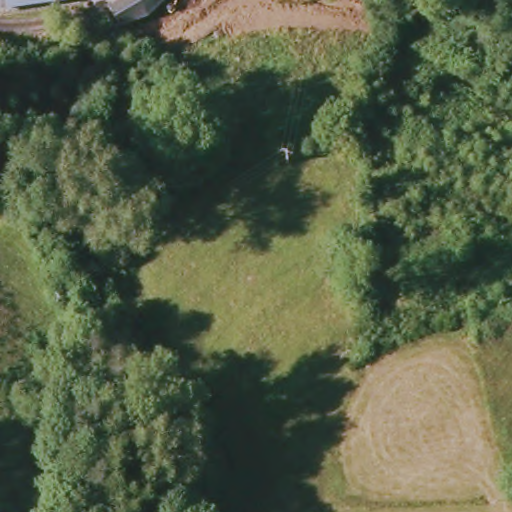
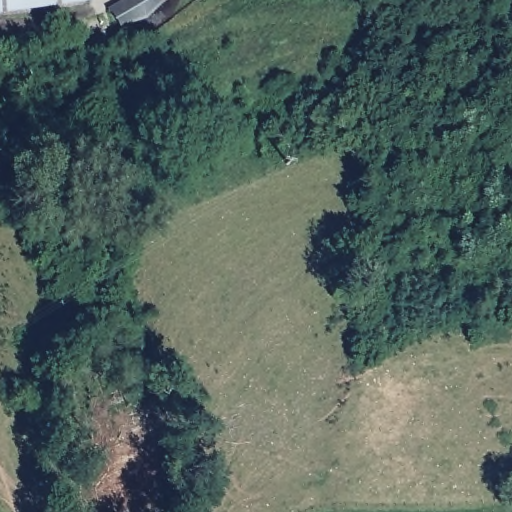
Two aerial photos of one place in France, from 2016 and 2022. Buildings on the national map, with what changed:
unchanged [(12,10),(0,11),(0,0),(85,0),(85,1),(12,10)]
unchanged [(145,15),(115,30),(110,14),(109,13),(135,0),(157,0),(160,4),(145,15)]

